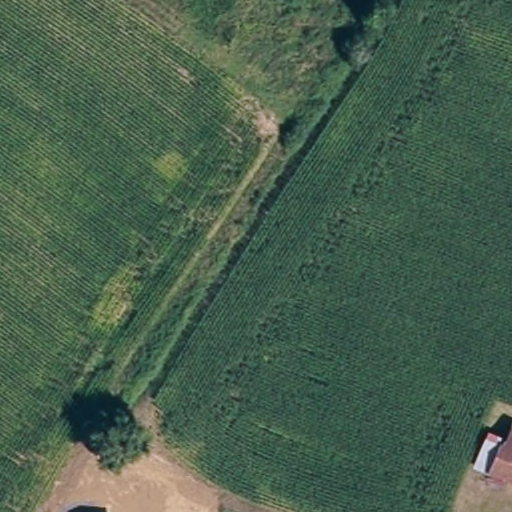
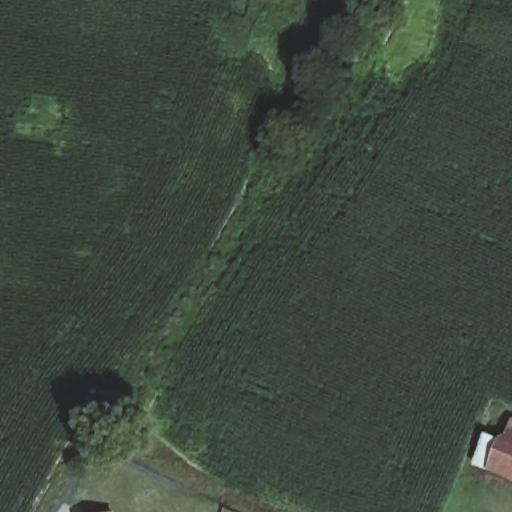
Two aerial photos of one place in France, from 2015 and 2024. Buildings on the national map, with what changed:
unchanged [(474,465),(486,432),(506,438),(512,424),(512,478),(474,465)]

